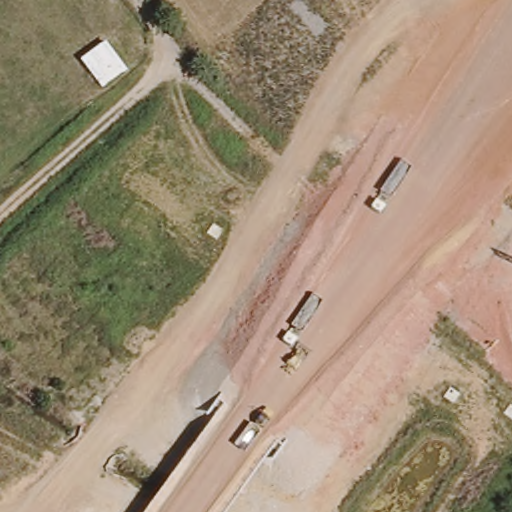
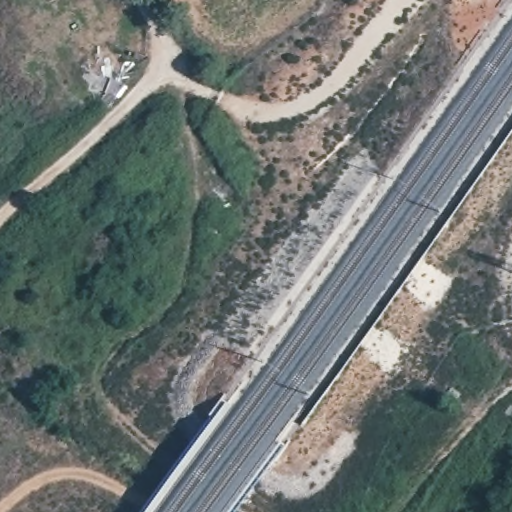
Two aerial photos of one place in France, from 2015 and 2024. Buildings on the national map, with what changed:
unchanged [(109,42),(129,69),(105,87),(85,60),(109,42)]

